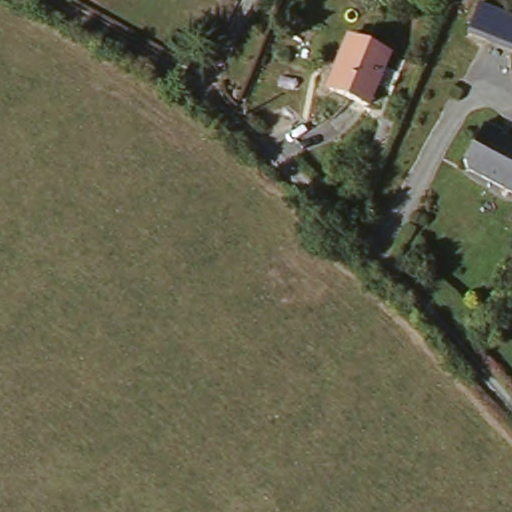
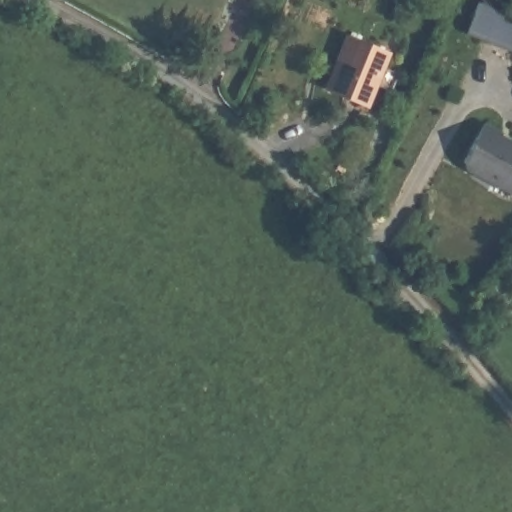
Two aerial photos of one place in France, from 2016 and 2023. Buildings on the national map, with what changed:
unchanged [(512,11),(512,43),(473,29),(484,1),(512,11)]
unchanged [(385,55),(365,106),(334,95),(345,66),(331,62),(339,38),(385,55)]
unchanged [(509,129),(508,131),(512,134),(512,186),(473,166),(470,158),(491,119),(509,129)]

